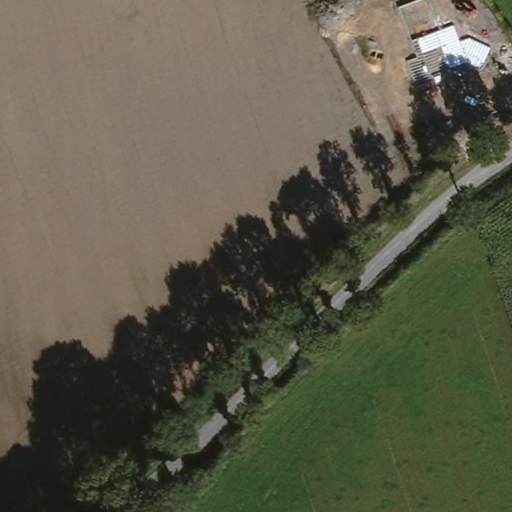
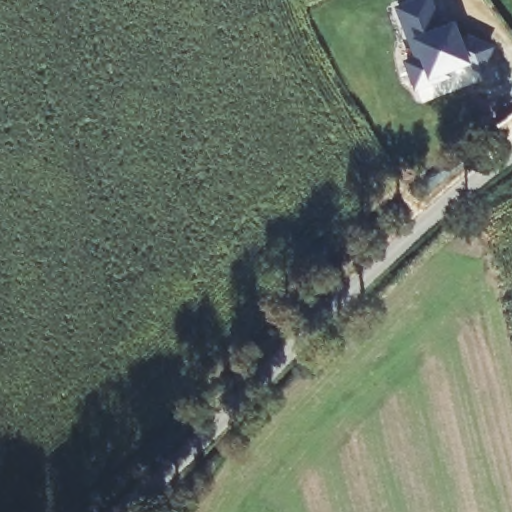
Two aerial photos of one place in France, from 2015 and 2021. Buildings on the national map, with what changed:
new [(414,58),(394,7),(412,0),(433,0),(442,28),(457,23),(465,46),(483,41),(496,47),(492,58),(473,65),(443,76),(444,82),(415,93),(404,61),(414,58)]

